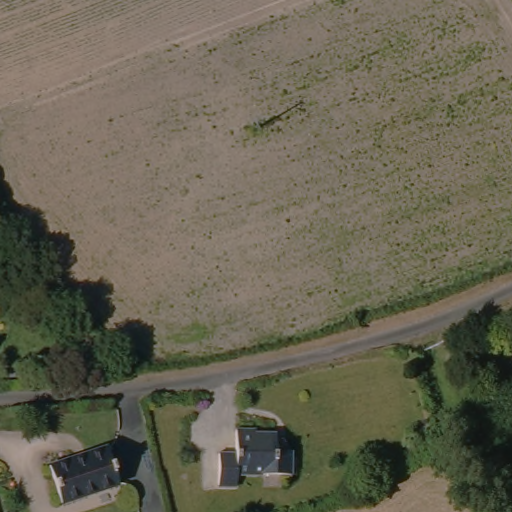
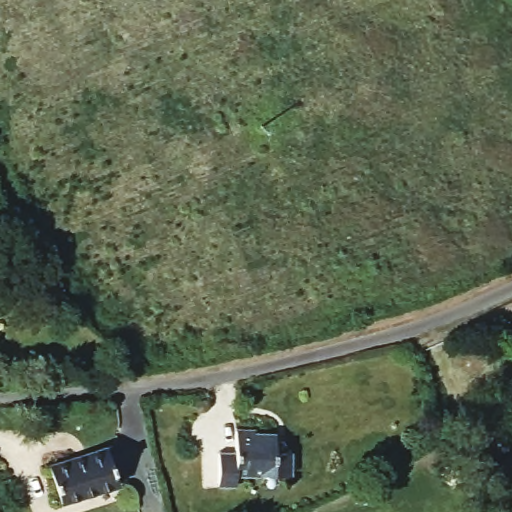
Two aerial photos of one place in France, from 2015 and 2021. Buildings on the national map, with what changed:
unchanged [(247,434),(272,435),(272,445),(292,445),(293,477),(235,477),(235,487),(214,487),(213,449),(232,449),(232,425),(247,425),(247,434)]
unchanged [(119,481),(64,501),(52,467),(106,447),(119,481)]

